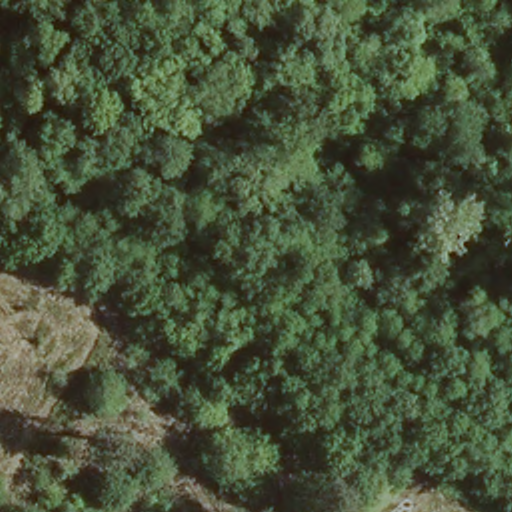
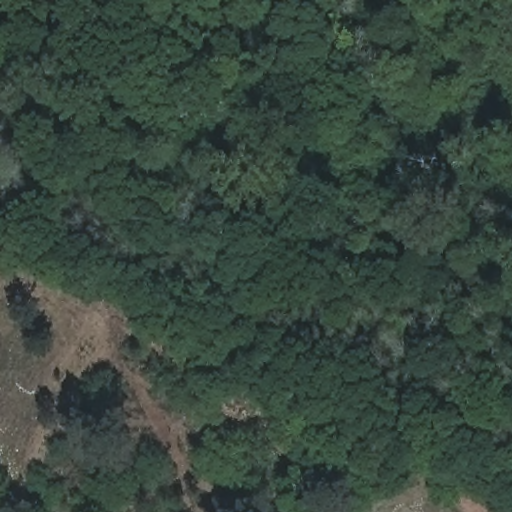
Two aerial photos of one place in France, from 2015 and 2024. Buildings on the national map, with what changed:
[]

